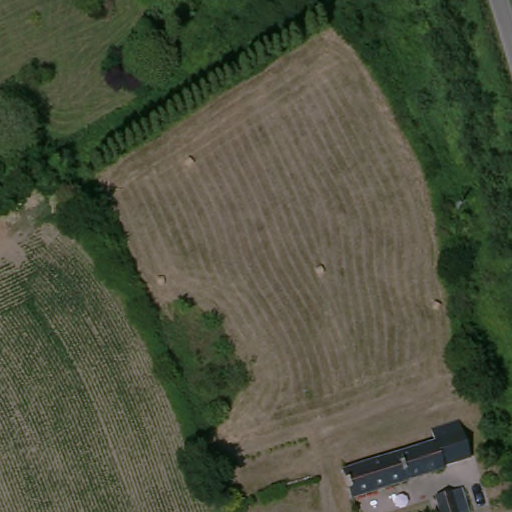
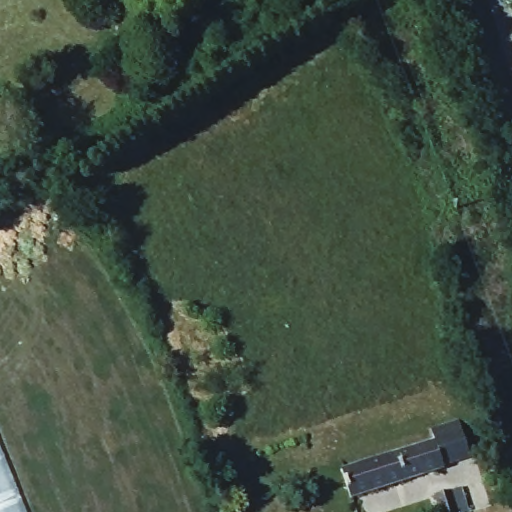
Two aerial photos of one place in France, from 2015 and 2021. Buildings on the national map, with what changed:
unchanged [(446,470),(447,473),(360,505),(349,474),(390,458),(434,441),(431,433),(459,424),(461,430),(472,461),(446,470)]
new [(23,512),(0,512),(0,453),(23,512)]
unchanged [(459,512),(435,512),(430,496),(456,488),(462,508),(458,509),(459,512)]

